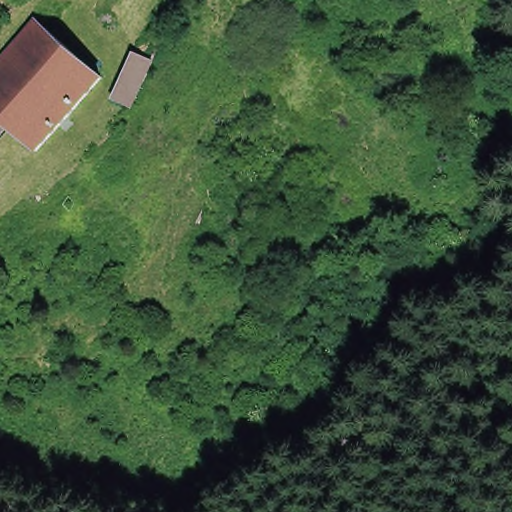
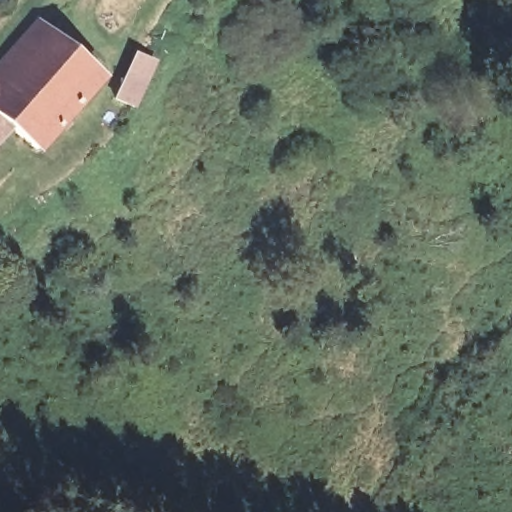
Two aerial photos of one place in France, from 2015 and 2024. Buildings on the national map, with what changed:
unchanged [(22,31),(35,17),(97,74),(37,146),(10,124),(0,116),(0,56),(22,31)]
unchanged [(161,55),(136,105),(106,91),(130,41),(161,55)]
unchanged [(10,124),(0,135),(0,116),(10,124)]

